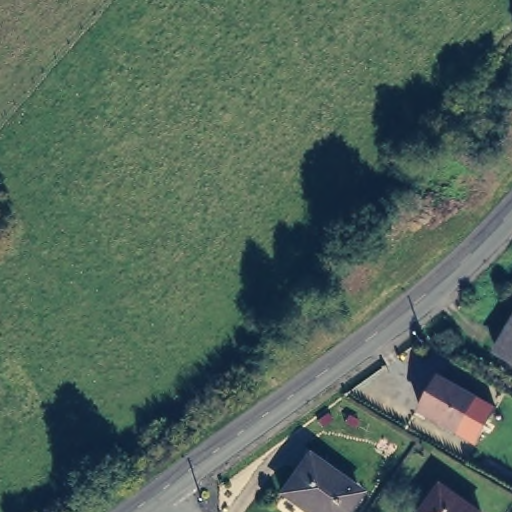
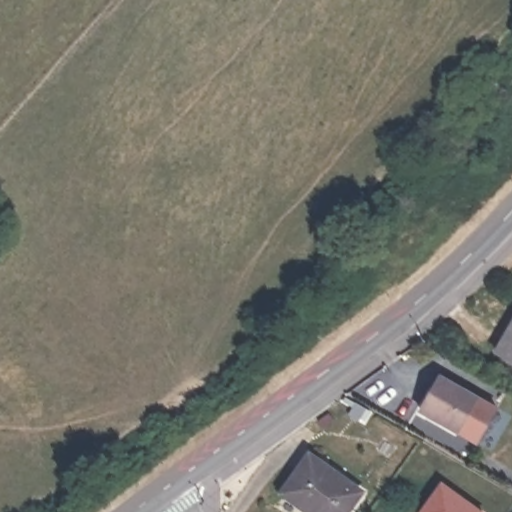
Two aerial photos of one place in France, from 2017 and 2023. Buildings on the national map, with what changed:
unchanged [(512,327),(512,362),(497,353),(512,327)]
unchanged [(475,402),(456,436),(417,415),(437,380),(475,402)]
unchanged [(353,512),(318,512),(306,503),(303,506),(287,493),(314,455),(366,493),(353,512)]
unchanged [(478,511),(478,512),(415,512),(436,481),(478,511)]

